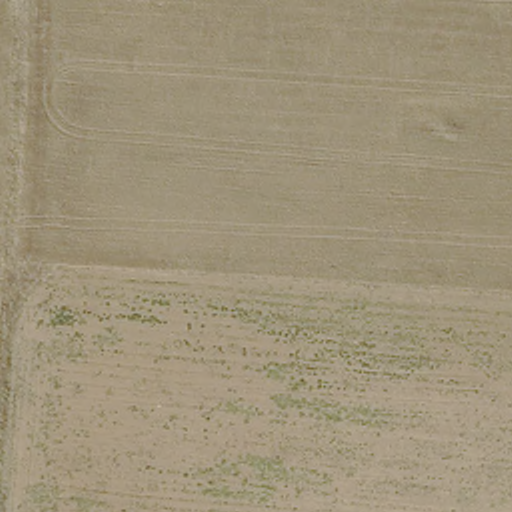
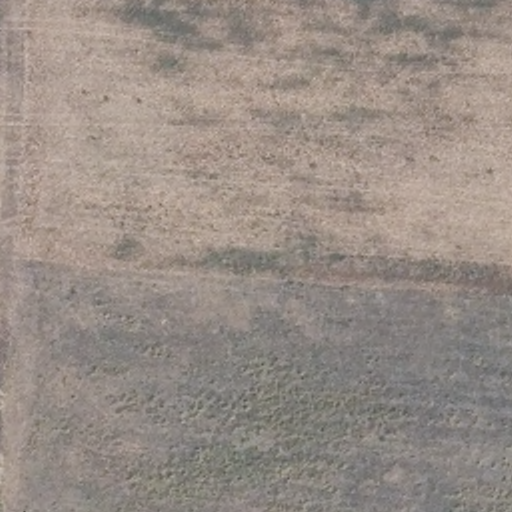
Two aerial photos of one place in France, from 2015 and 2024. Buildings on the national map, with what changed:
[]

